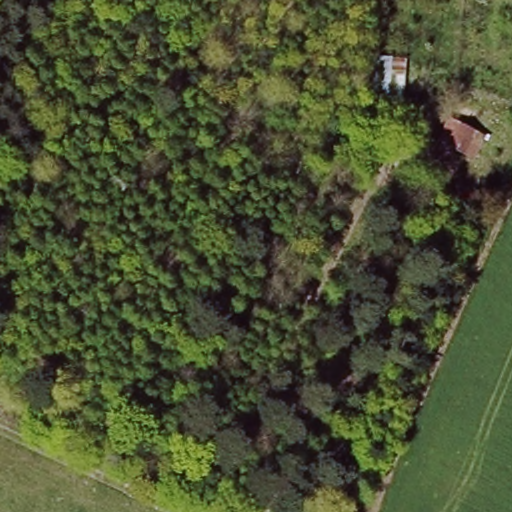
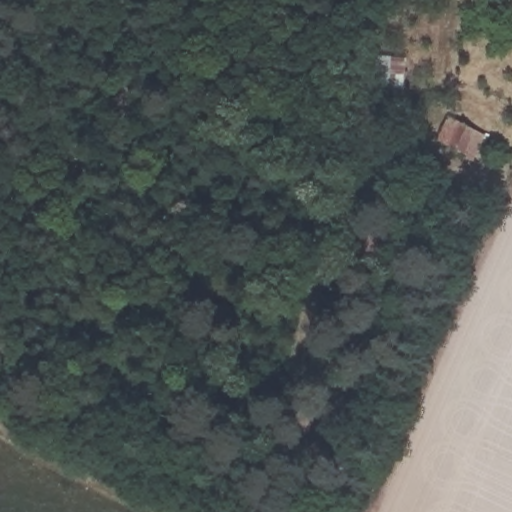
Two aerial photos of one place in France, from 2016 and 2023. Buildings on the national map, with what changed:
unchanged [(410,51),(410,121),(368,122),(367,53),(410,51)]
unchanged [(482,130),(467,156),(432,140),(444,111),(482,130)]

